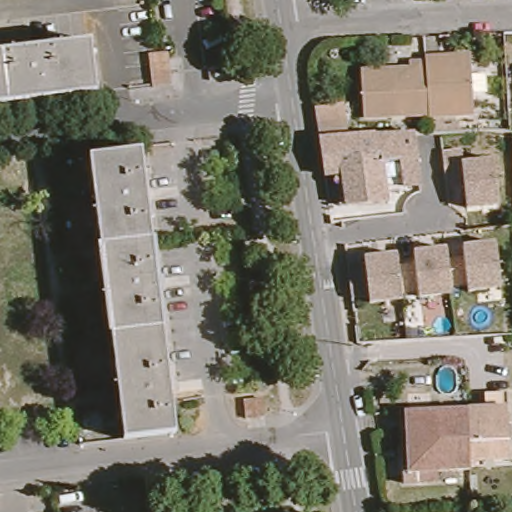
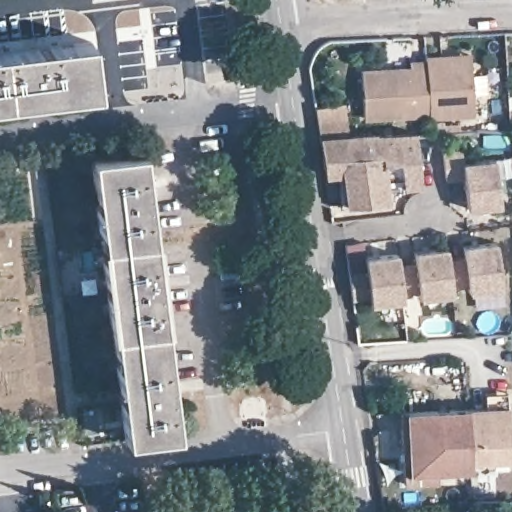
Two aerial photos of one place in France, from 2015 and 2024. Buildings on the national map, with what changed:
unchanged [(1,56),(91,45),(97,96),(7,107),(1,56)]
unchanged [(145,54),(166,51),(170,86),(150,90),(145,54)]
unchanged [(421,57),(439,57),(470,55),(471,62),(475,112),(424,116),(420,62),(421,57)]
unchanged [(7,107),(0,108),(0,56),(1,56),(7,107)]
unchanged [(424,116),(360,119),(357,72),(405,70),(405,62),(420,62),(424,116)]
unchanged [(387,194),(388,208),(345,211),(342,180),(324,182),(319,145),(317,131),(315,114),(343,110),(345,126),(347,142),(414,139),(417,161),(420,191),(387,194)]
unchanged [(464,176),(446,177),(442,151),(462,148),(464,161),(492,159),(497,207),(467,209),(464,176)]
unchanged [(95,245),(85,156),(136,150),(147,238),(95,245)]
unchanged [(106,332),(95,245),(147,238),(158,326),(106,332)]
unchanged [(466,282),(450,283),(451,294),(420,297),(419,288),(401,291),(402,301),(370,304),(369,295),(351,297),(349,270),(365,268),(364,257),(397,252),(398,263),(414,262),(413,252),(446,249),(447,258),(463,257),(462,247),(495,243),(500,288),(467,293),(466,282)]
unchanged [(169,433),(119,438),(106,332),(158,326),(169,433)]
unchanged [(512,407),(512,417),(512,460),(474,462),(470,409),(512,407)]
unchanged [(474,462),(475,472),(442,472),(442,482),(408,482),(405,412),(470,409),(474,462)]

